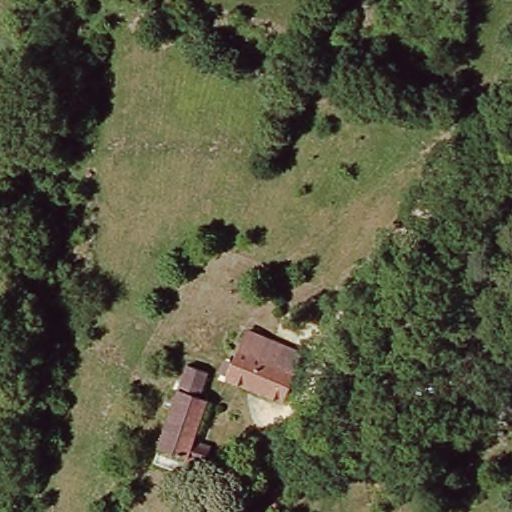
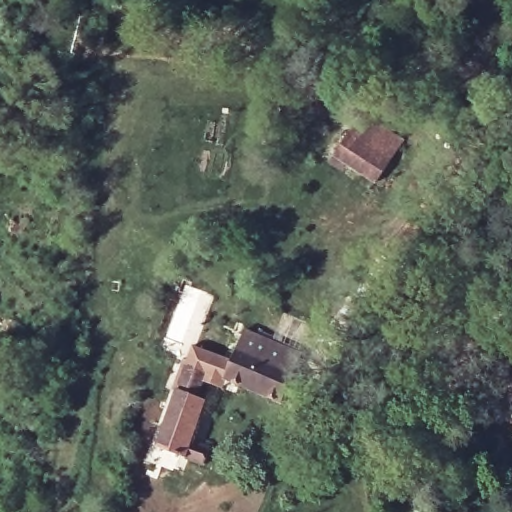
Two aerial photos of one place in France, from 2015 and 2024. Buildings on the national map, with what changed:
new [(361,113),(403,141),(377,182),(335,155),(361,113)]
unchanged [(230,346),(237,329),(293,355),(272,402),(215,377),(226,345),(230,346)]
unchanged [(200,456),(195,470),(151,453),(178,371),(200,378),(191,406),(198,409),(185,451),(200,456)]
unchanged [(505,402),(512,388),(512,406),(505,402)]

